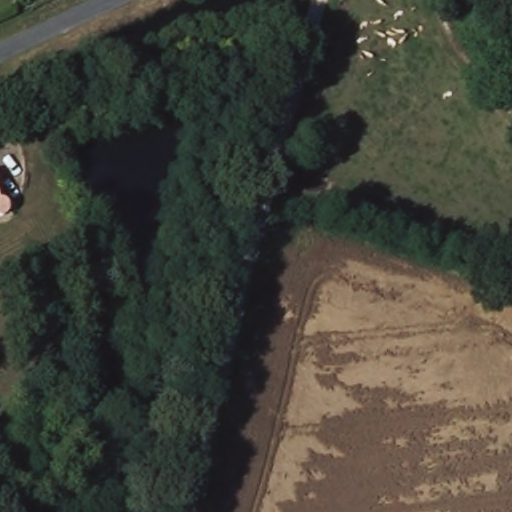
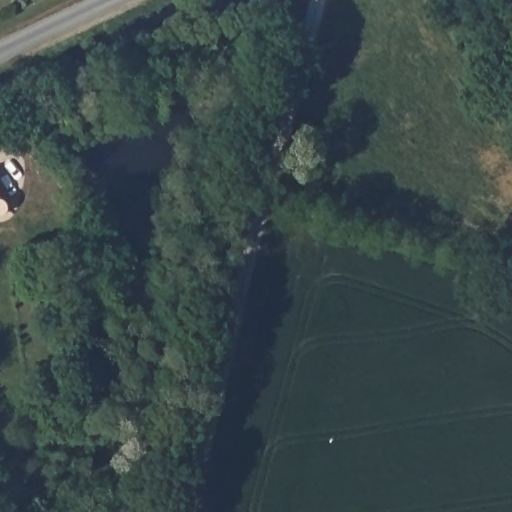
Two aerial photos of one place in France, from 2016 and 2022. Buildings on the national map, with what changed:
unchanged [(0,216),(0,171),(16,210),(0,216)]

